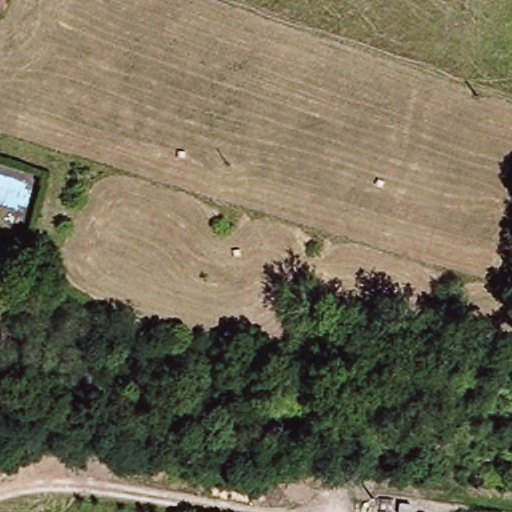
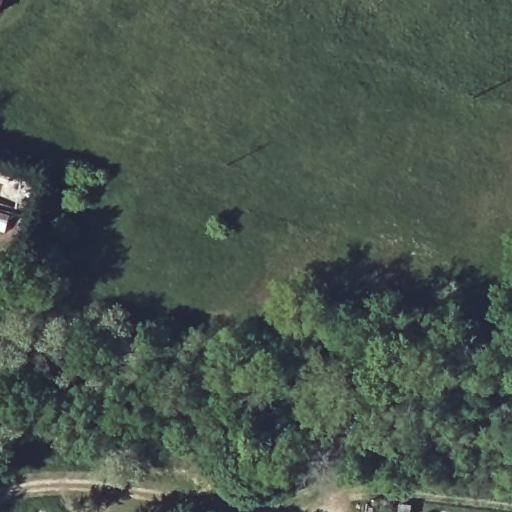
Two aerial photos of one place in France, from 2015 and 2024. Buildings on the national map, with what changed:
unchanged [(0,0),(1,0),(1,1),(0,3),(0,0)]

